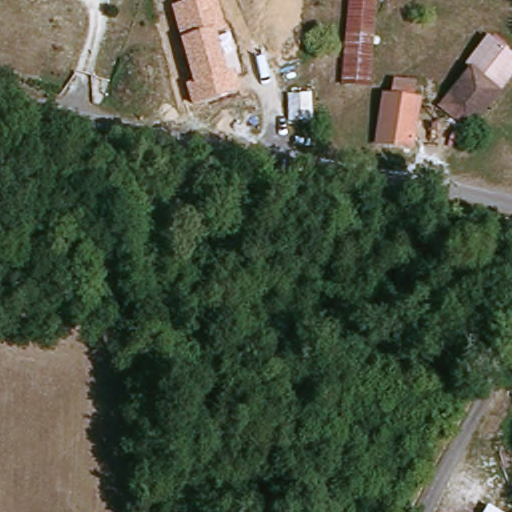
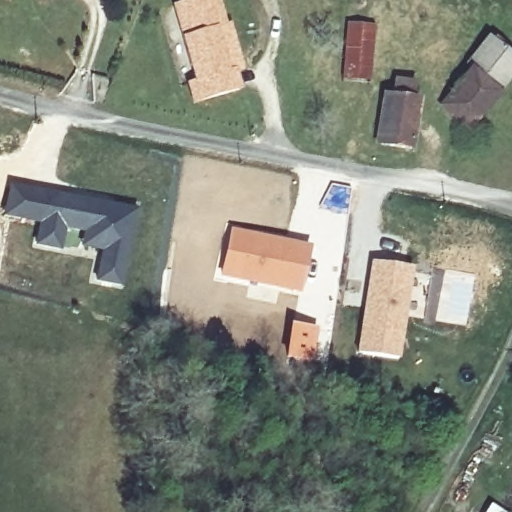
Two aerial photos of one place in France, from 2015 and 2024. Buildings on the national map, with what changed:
unchanged [(217,32),(228,71),(235,69),(240,90),(192,104),(186,83),(194,81),(173,6),(194,0),(218,0),(227,30),(217,32)]
unchanged [(369,86),(344,83),(348,0),(388,0),(391,20),(378,20),(369,86)]
unchanged [(448,103),(486,62),(497,50),(512,61),(512,81),(511,82),(479,126),(448,103)]
unchanged [(420,101),(414,153),(383,149),(390,96),(420,101)]
new [(62,248),(39,244),(44,222),(29,219),(8,215),(15,185),(35,189),(51,192),(103,204),(107,209),(115,211),(116,207),(138,211),(122,285),(99,281),(105,251),(84,246),(88,231),(66,227),(62,248)]
new [(230,227),(310,244),(300,294),(219,277),(230,227)]
new [(366,309),(371,309),(372,301),(368,300),(374,263),(413,269),(397,360),(359,354),(366,309)]
new [(289,322),(317,326),(313,364),(284,359),(289,322)]

